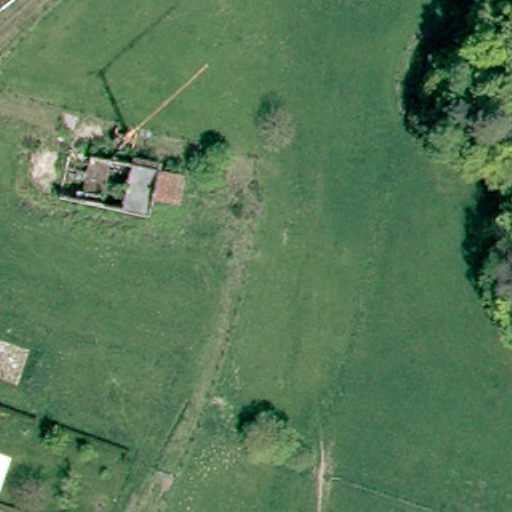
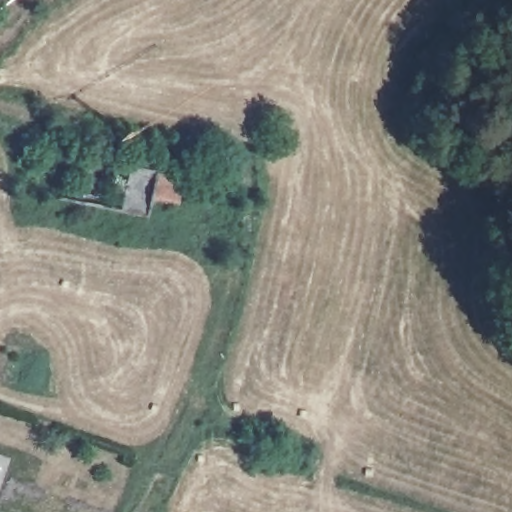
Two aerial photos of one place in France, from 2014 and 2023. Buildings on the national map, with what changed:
unchanged [(179,177),(175,198),(147,194),(143,219),(34,194),(41,147),(179,177)]

